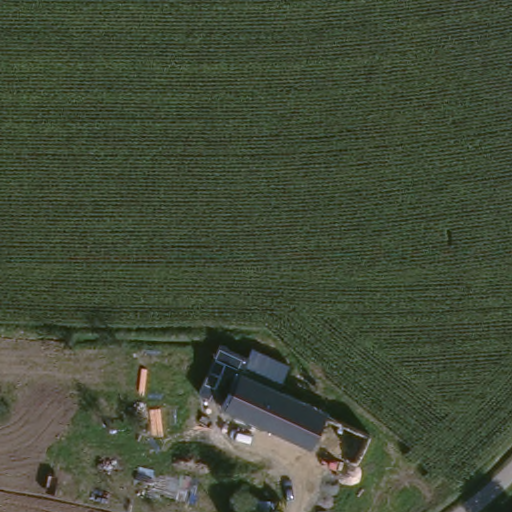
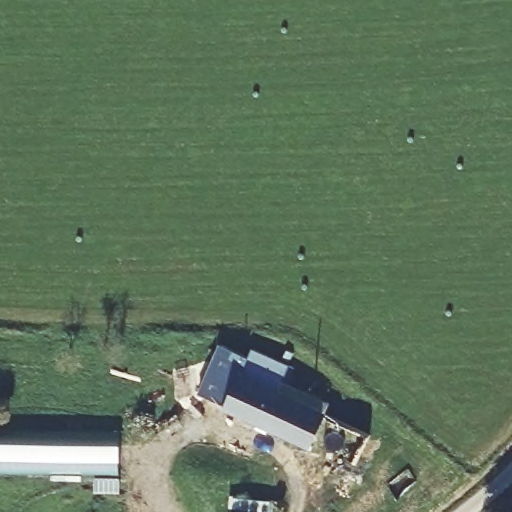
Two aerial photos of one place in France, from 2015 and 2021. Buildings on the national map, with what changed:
unchanged [(213,357),(219,344),(252,359),(277,371),(270,389),(333,414),(324,443),(272,423),(262,419),(248,414),(214,400),(196,392),(213,357)]
new [(119,476),(0,474),(0,428),(120,429),(119,476)]

